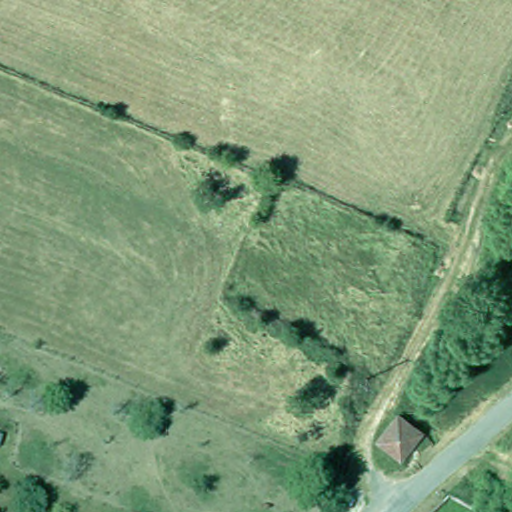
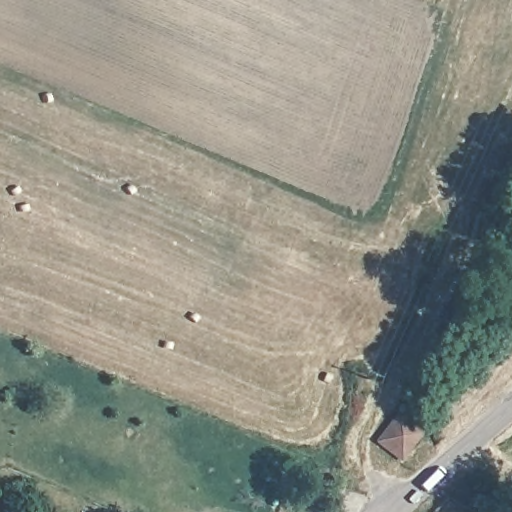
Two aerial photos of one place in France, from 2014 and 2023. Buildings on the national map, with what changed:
unchanged [(372,448),(392,414),(414,427),(399,460),(372,448)]

